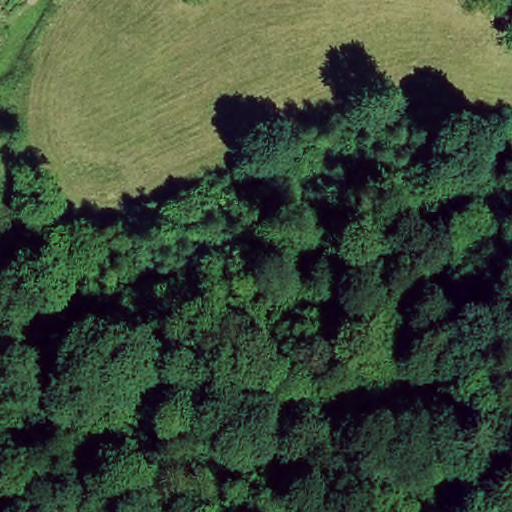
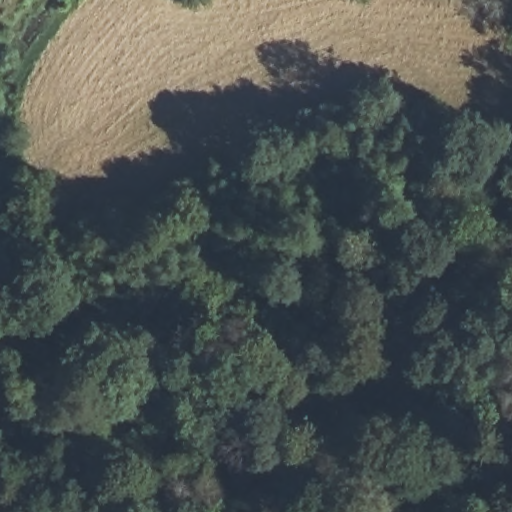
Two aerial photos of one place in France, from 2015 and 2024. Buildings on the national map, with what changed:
[]

